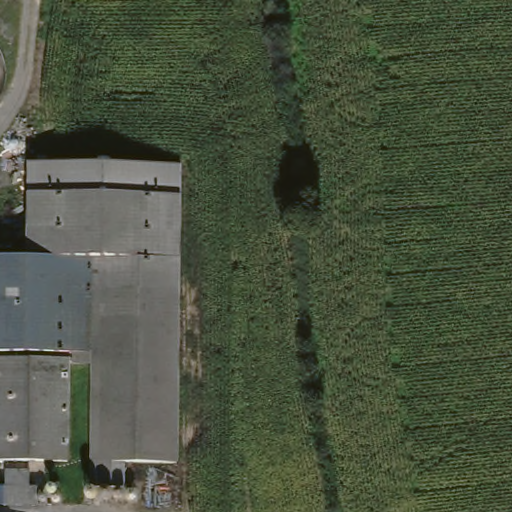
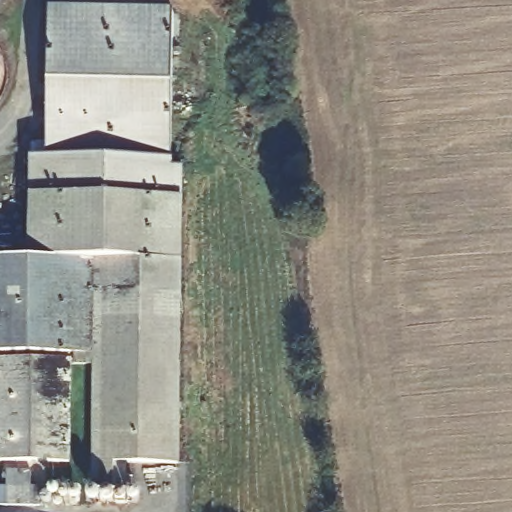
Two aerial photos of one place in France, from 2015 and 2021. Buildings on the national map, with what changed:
new [(49,5),(172,8),(170,163),(45,161),(49,5)]
unchanged [(110,465),(109,490),(89,488),(93,362),(70,362),(70,354),(0,353),(0,255),(29,255),(32,195),(34,161),(183,163),(182,197),(173,466),(110,465)]
unchanged [(67,361),(64,464),(0,463),(0,359),(67,361)]
new [(0,506),(0,486),(6,486),(6,470),(30,470),(30,485),(41,485),(42,506),(0,506)]
demolished [(5,491),(37,492),(37,510),(5,510),(5,491)]

